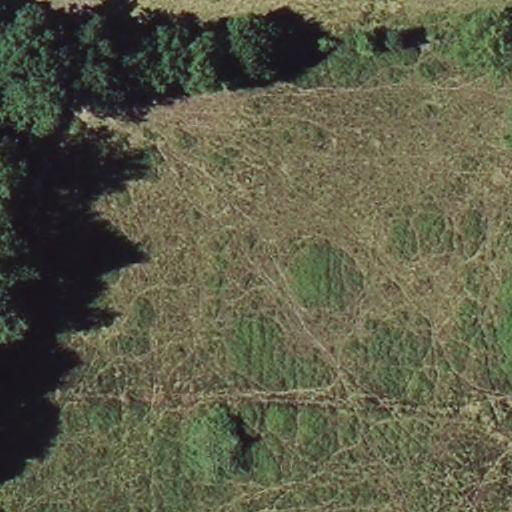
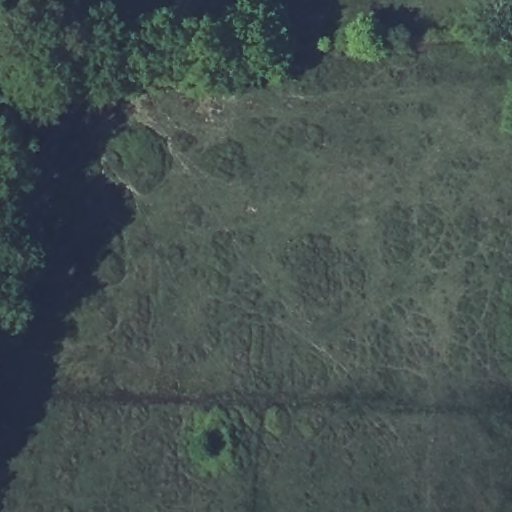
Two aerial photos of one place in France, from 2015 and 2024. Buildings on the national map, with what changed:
[]

